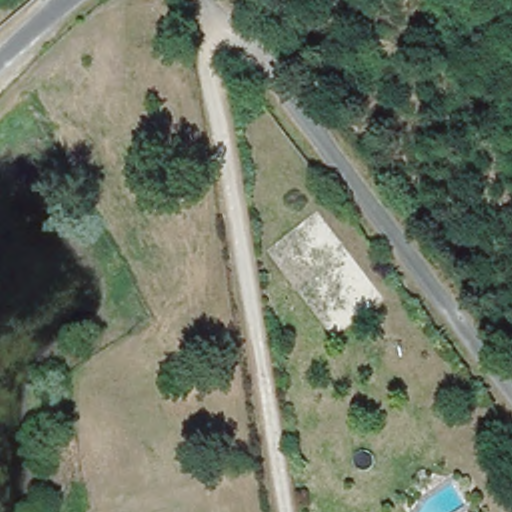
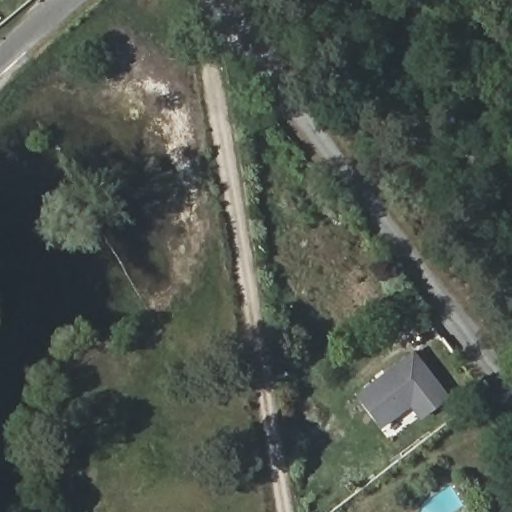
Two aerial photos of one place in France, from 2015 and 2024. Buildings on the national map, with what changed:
new [(412,351),(447,395),(418,417),(407,404),(378,427),(353,395),(412,351)]

